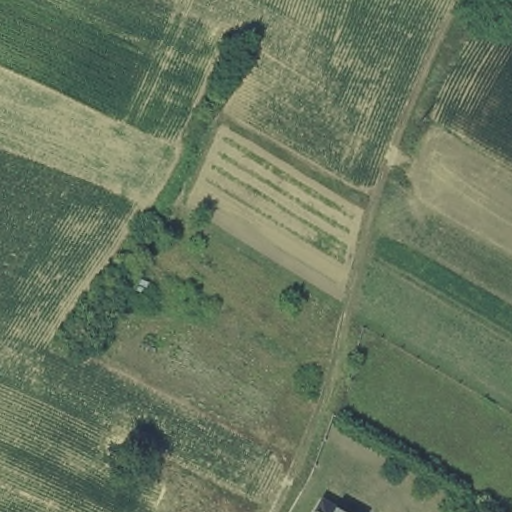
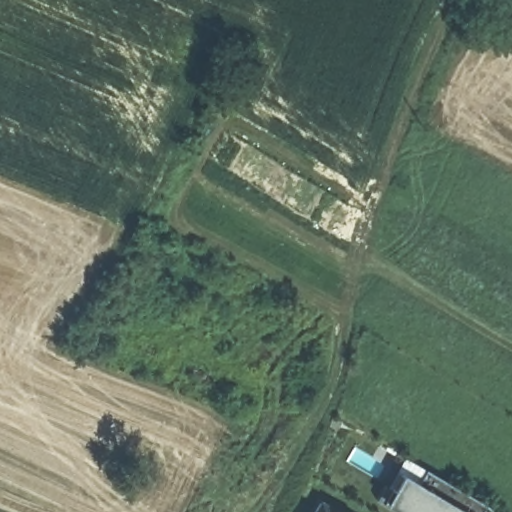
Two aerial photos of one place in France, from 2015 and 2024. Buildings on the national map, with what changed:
new [(417,482),(425,469),(490,507),(488,512),(398,512),(383,503),(400,472),(417,482)]
unchanged [(334,512),(321,512),(324,506),(334,512)]

